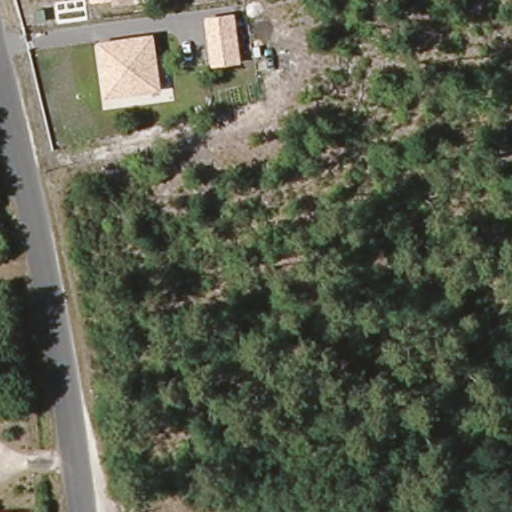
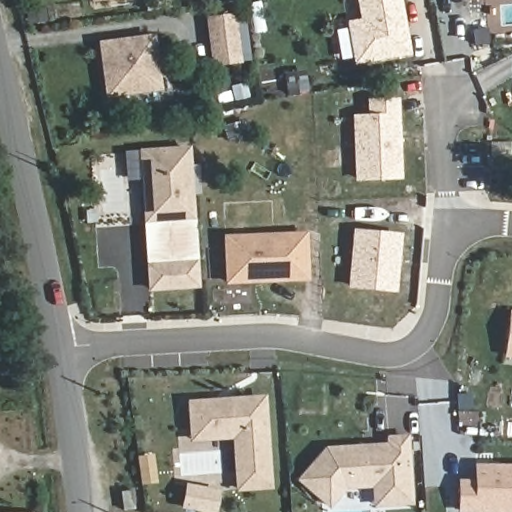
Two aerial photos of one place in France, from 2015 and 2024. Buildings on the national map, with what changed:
unchanged [(90,0),(110,0),(90,3),(90,0)]
new [(393,0),(402,51),(351,60),(344,23),(357,20),(354,0),(393,0)]
unchanged [(242,62),(212,67),(205,17),(235,14),(242,62)]
unchanged [(162,90),(104,99),(97,42),(154,34),(162,90)]
new [(350,115),(366,114),(365,100),(398,99),(401,179),(353,181),(350,115)]
new [(137,150),(183,148),(187,216),(141,219),(140,198),(139,177),(137,150)]
new [(187,216),(194,215),(197,262),(192,262),(146,265),(141,219),(187,216)]
new [(352,229),(401,234),(396,293),(346,288),(352,229)]
new [(301,234),(303,278),(224,281),(222,237),(301,234)]
new [(192,262),(193,285),(147,289),(146,265),(192,262)]
new [(512,314),(512,355),(502,354),(507,313),(512,314)]
new [(220,398),(241,396),(241,399),(260,398),(265,484),(235,486),(231,434),(209,435),(189,437),(188,427),(186,400),(208,399),(220,398)]
new [(370,503),(369,483),(339,484),(323,503),(295,478),(321,448),(359,446),(370,444),(384,444),(383,437),(400,436),(404,488),(405,501),(370,503)]
new [(457,479),(472,479),(473,463),(512,463),(512,512),(457,512),(457,479)]

